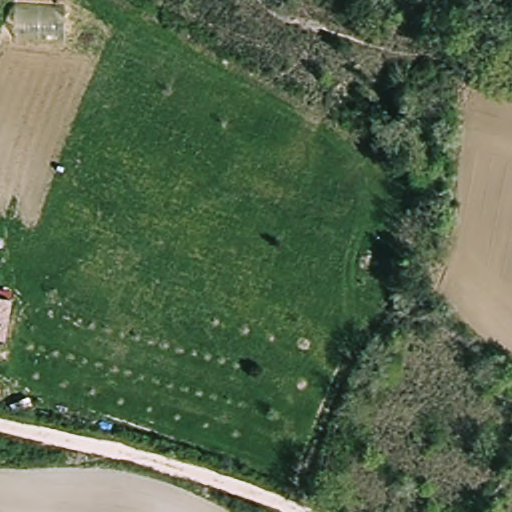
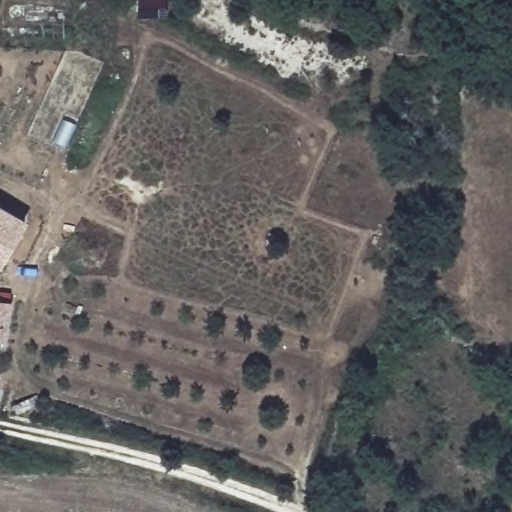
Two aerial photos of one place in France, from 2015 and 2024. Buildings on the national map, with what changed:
new [(0,269),(0,205),(27,222),(0,269)]
unchanged [(0,297),(17,302),(6,342),(0,340),(0,297)]

